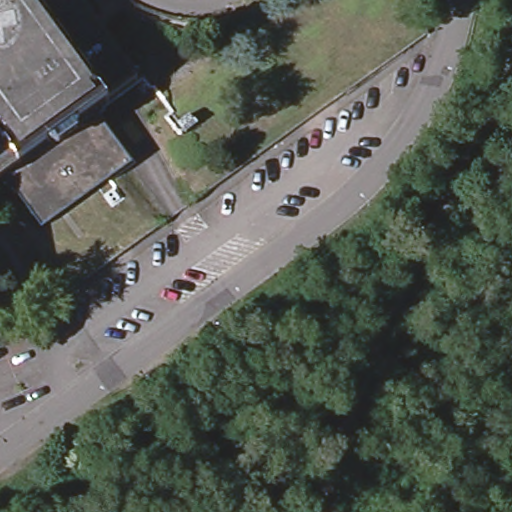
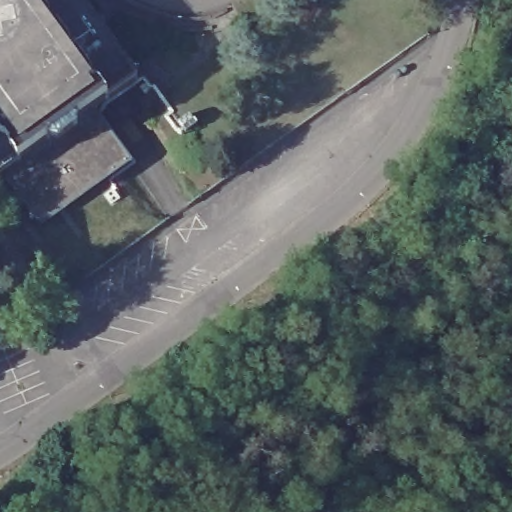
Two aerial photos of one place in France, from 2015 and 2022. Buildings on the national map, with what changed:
unchanged [(0,25),(0,0),(2,0),(14,16),(0,25)]
unchanged [(0,25),(14,16),(2,0),(58,0),(0,41),(0,25)]
unchanged [(92,0),(145,75),(102,106),(11,172),(0,180),(0,41),(58,0),(92,0)]
unchanged [(140,160),(50,226),(11,172),(102,106),(140,160)]

